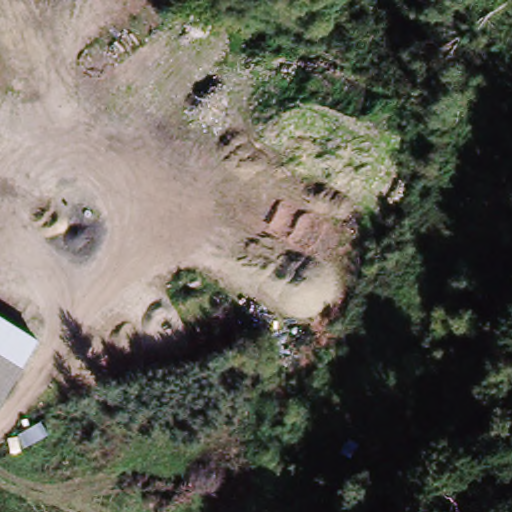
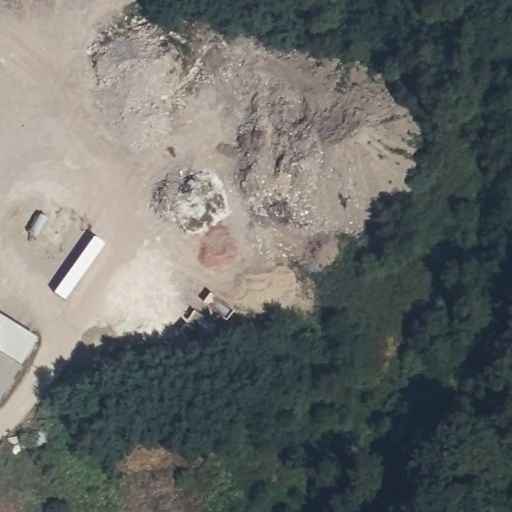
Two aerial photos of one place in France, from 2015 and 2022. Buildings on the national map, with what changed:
unchanged [(0,401),(0,317),(36,340),(0,401)]

